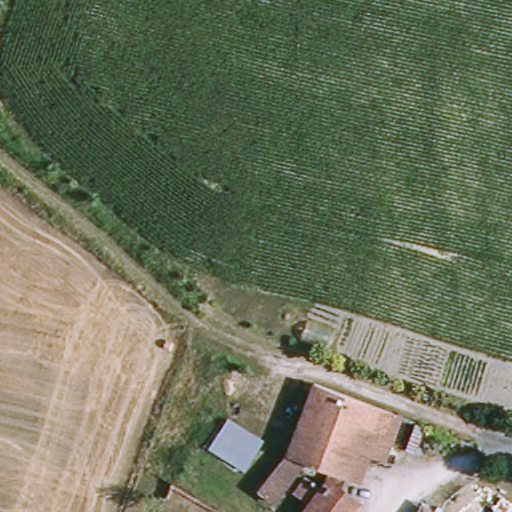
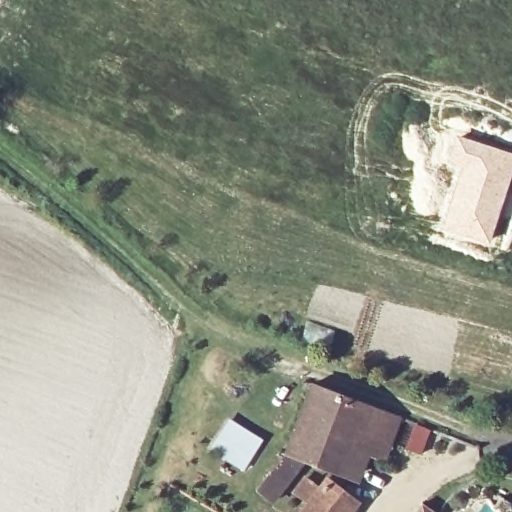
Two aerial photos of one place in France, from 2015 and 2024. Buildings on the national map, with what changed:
new [(459,169),(446,164),(454,133),(512,153),(512,175),(489,246),(437,229),(459,169)]
unchanged [(307,461),(273,502),(259,491),(287,454),(313,382),(401,417),(386,447),(362,436),(343,478),(307,461)]
unchanged [(264,440),(243,472),(210,449),(228,421),(264,440)]
unchanged [(364,487),(343,478),(362,436),(386,447),(364,487)]
unchanged [(356,501),(349,512),(302,512),(324,480),(356,501)]
unchanged [(449,506),(445,512),(418,512),(430,494),(449,506)]

